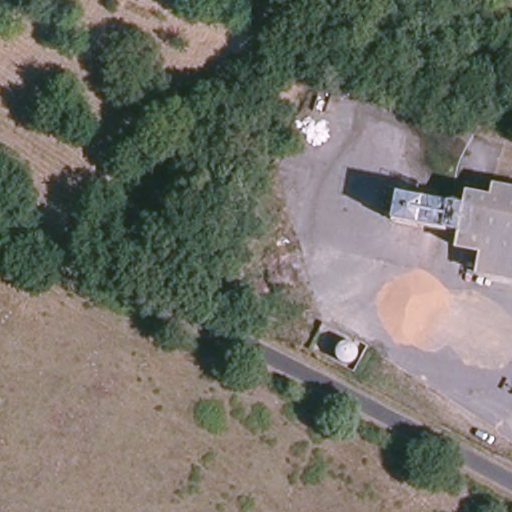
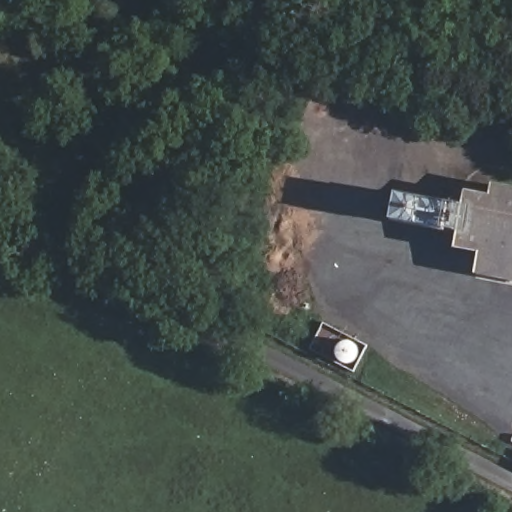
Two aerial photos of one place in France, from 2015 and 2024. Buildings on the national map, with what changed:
unchanged [(499,182),(512,185),(512,279),(481,272),(484,252),(496,200),(499,182)]
unchanged [(395,218),(400,192),(451,205),(447,230),(395,218)]
unchanged [(484,252),(462,248),(471,195),(496,200),(484,252)]
unchanged [(378,350),(369,374),(320,353),(333,328),(378,350)]

